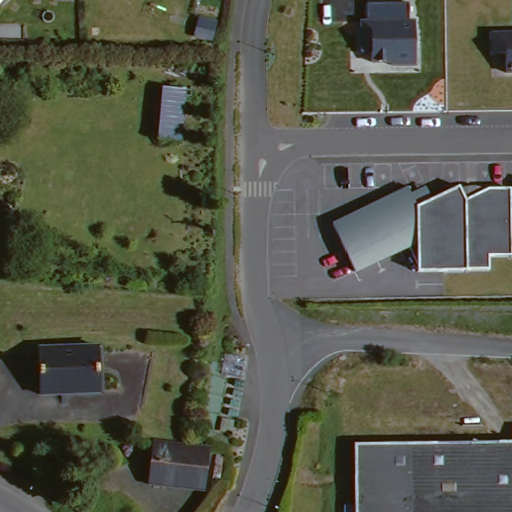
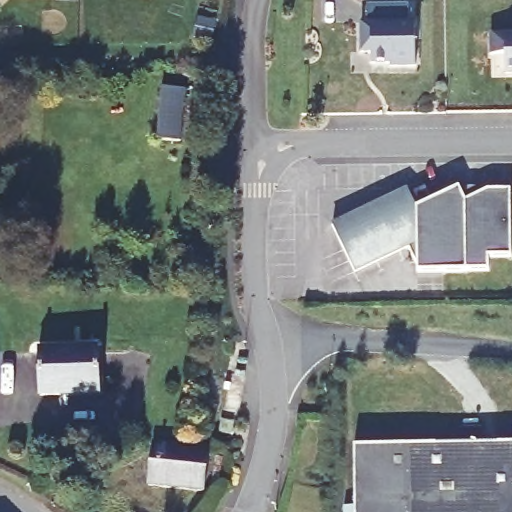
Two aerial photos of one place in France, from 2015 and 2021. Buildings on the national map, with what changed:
unchanged [(405,26),(413,28),(414,68),(369,69),(369,56),(362,58),(360,25),(369,25),(368,7),(405,8),(405,26)]
unchanged [(512,33),(512,73),(498,72),(499,33),(512,33)]
unchanged [(180,145),(157,143),(163,91),(185,93),(180,145)]
unchanged [(415,196),(460,188),(512,189),(512,261),(472,259),(470,270),(418,268),(406,248),(364,270),(335,220),(407,184),(415,196)]
unchanged [(58,393),(58,397),(40,397),(40,350),(94,348),(96,392),(58,393)]
unchanged [(234,421),(233,433),(221,432),(222,420),(234,421)]
unchanged [(200,492),(151,487),(154,454),(156,444),(210,449),(209,461),(205,492),(200,492)]
unchanged [(512,446),(512,512),(354,512),(352,448),(512,446)]

